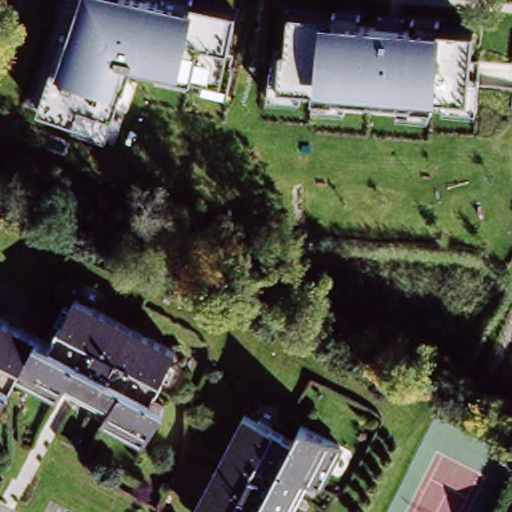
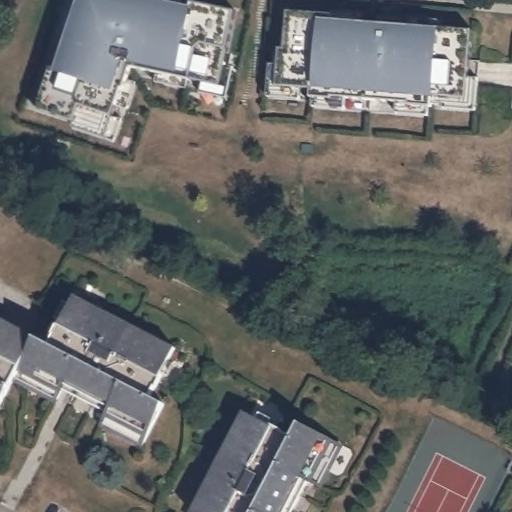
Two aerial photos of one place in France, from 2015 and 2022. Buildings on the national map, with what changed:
unchanged [(191,8),(192,2),(240,15),(233,48),(227,48),(224,63),(232,65),(227,86),(128,65),(106,134),(39,109),(51,67),(57,69),(79,0),(150,0),(191,8)]
unchanged [(329,16),(329,10),(359,14),(357,25),(412,29),(413,18),(444,21),(443,29),(474,31),(470,78),(480,79),(477,106),(436,104),(434,115),(396,113),(395,103),(339,98),(338,109),(311,107),(311,89),(299,88),(296,97),(267,93),(272,48),(286,49),(289,13),(329,16)]
unchanged [(35,350),(64,294),(174,350),(146,405),(158,411),(140,446),(6,378),(23,343),(35,350)]
unchanged [(6,378),(0,390),(0,331),(23,343),(6,378)]
unchanged [(293,442),(300,429),(334,446),(301,512),(191,512),(241,414),(293,442)]

